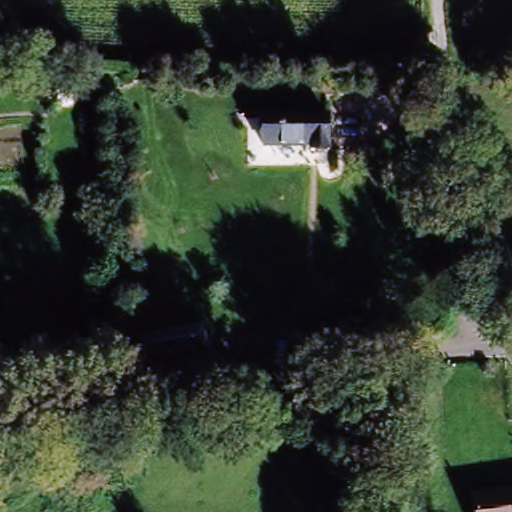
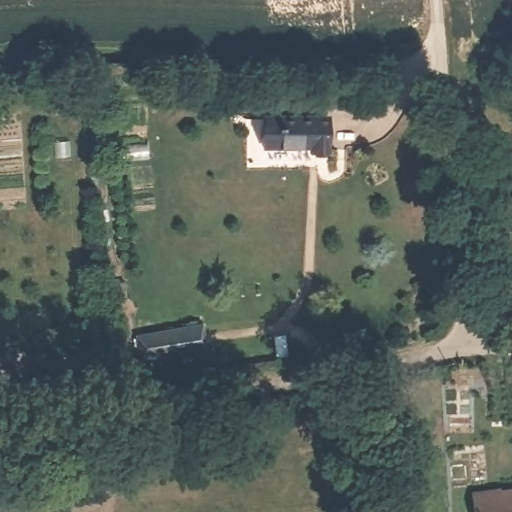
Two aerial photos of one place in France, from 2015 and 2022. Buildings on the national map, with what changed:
unchanged [(310,151),(309,140),(263,139),(265,111),(329,113),(328,151),(310,151)]
unchanged [(201,330),(204,354),(141,362),(137,339),(201,330)]
unchanged [(471,512),(469,496),(512,490),(512,512),(471,512)]

